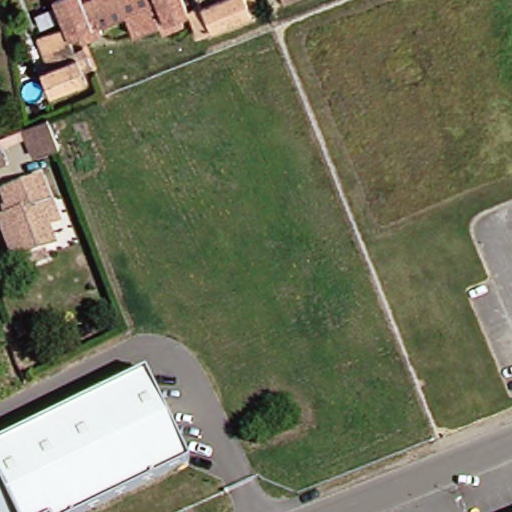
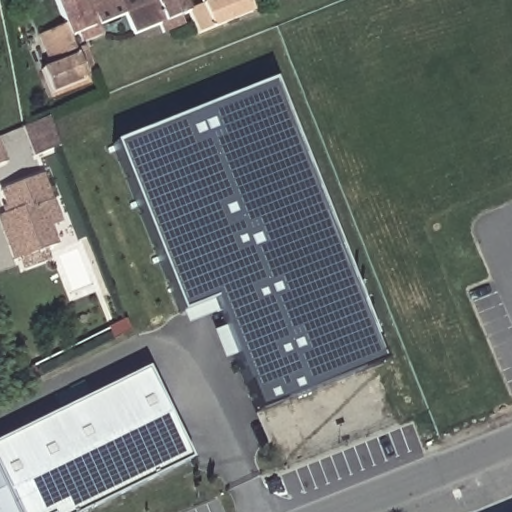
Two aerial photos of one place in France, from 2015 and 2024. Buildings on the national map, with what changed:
unchanged [(88,0),(111,0),(116,13),(118,19),(93,29),(98,40),(78,47),(74,39),(65,43),(60,30),(48,0),(75,0),(76,4),(88,0)]
unchanged [(175,21),(179,31),(159,38),(155,28),(127,40),(118,19),(116,13),(148,0),(178,0),(184,15),(185,17),(175,21)]
unchanged [(245,7),(248,17),(194,38),(185,17),(184,15),(210,4),(208,0),(251,0),(253,3),(245,7)]
unchanged [(289,0),(280,3),(279,0),(289,0)]
unchanged [(69,55),(79,51),(88,72),(78,76),(81,84),(44,99),(34,75),(44,70),(33,41),(60,30),(65,43),(69,55)]
new [(170,322),(103,152),(263,89),(374,370),(248,421),(203,309),(172,321),(170,322)]
unchanged [(23,126),(46,116),(58,146),(34,155),(33,152),(23,126)]
unchanged [(0,208),(0,192),(36,178),(45,203),(35,207),(43,226),(50,247),(9,264),(2,249),(0,244),(0,218),(4,216),(0,208)]
unchanged [(141,374),(143,373),(179,447),(187,463),(178,468),(88,512),(0,512),(0,443),(114,387),(141,374)]

